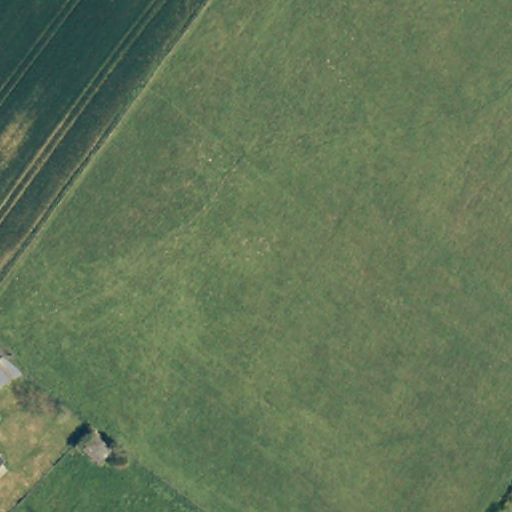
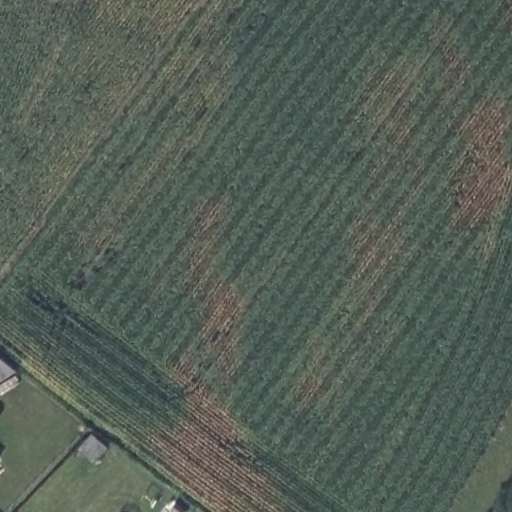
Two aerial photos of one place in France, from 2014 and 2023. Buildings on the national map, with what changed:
unchanged [(14,370),(0,378),(0,360),(14,370)]
unchanged [(0,462),(0,456),(3,459),(0,462)]

